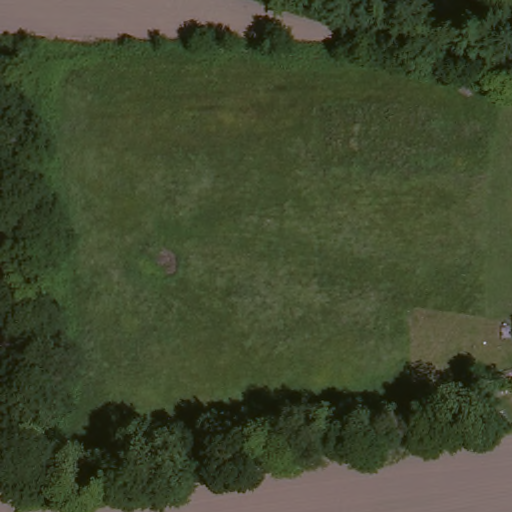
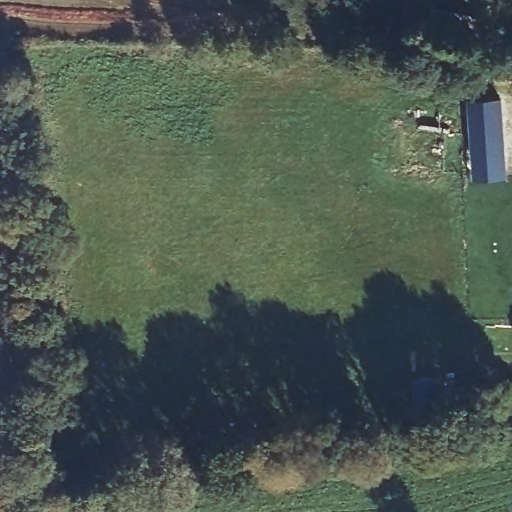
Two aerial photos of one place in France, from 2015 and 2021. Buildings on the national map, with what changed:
new [(469,101),(503,99),(508,178),(475,180),(469,101)]

